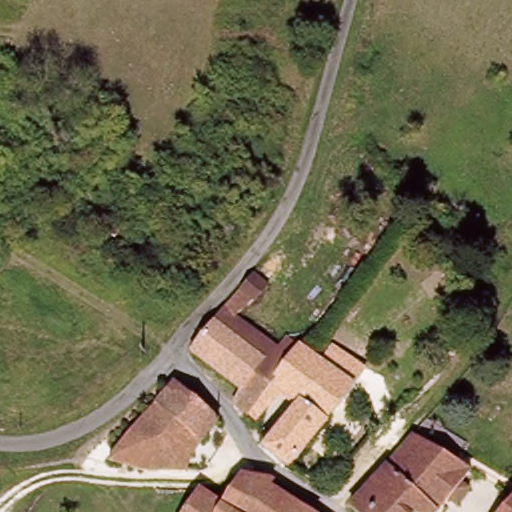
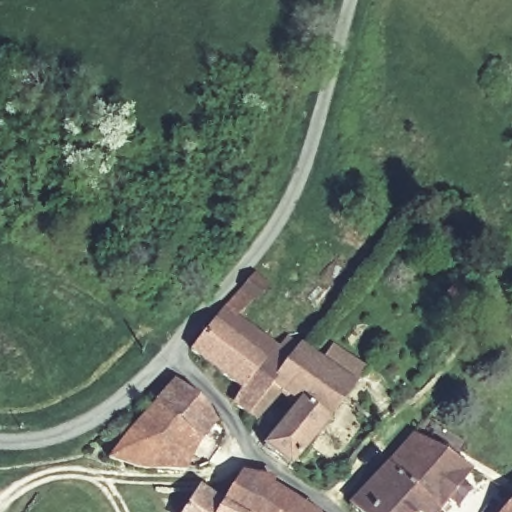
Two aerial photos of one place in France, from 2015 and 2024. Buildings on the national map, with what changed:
unchanged [(77,112),(61,132),(40,117),(57,94),(77,112)]
unchanged [(162,303),(87,247),(87,246),(133,192),(161,212),(146,227),(169,245),(154,263),(179,284),(162,303)]
unchanged [(179,284),(154,263),(169,245),(146,227),(161,212),(167,206),(214,244),(179,284)]
unchanged [(277,287),(246,320),(285,349),(300,336),(310,343),(256,412),(242,403),(245,384),(199,349),(262,275),(277,287)]
unchanged [(310,343),(363,385),(299,463),(272,444),(307,403),(288,388),(262,417),(256,412),(310,343)]
unchanged [(121,456),(141,431),(180,382),(222,418),(198,450),(207,460),(204,468),(158,463),(156,463),(121,456)]
unchanged [(421,507),(416,512),(370,512),(357,499),(425,428),(478,463),(470,473),(477,480),(466,495),(457,489),(446,503),(438,512),(429,512),(421,507)]
unchanged [(228,497),(241,472),(272,479),(271,487),(305,512),(187,512),(202,487),(228,497)]

